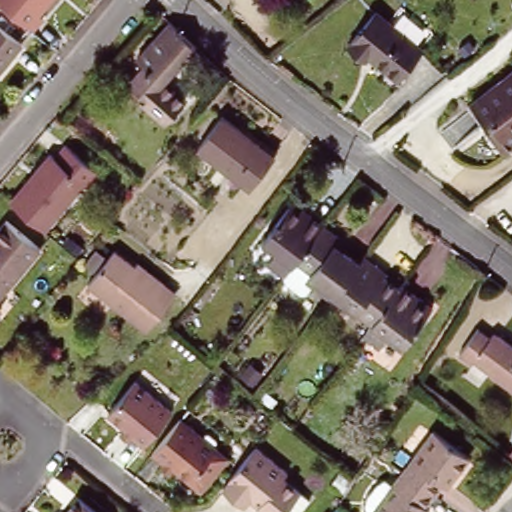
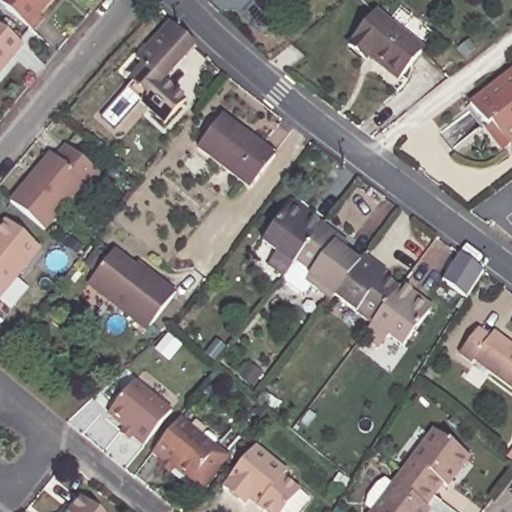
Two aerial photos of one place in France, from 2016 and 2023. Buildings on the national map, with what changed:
unchanged [(40,21),(30,32),(0,8),(0,0),(48,0),(34,16),(40,21)]
unchanged [(401,80),(371,56),(367,61),(350,47),(377,13),(423,47),(401,80)]
unchanged [(135,83),(146,71),(137,63),(171,24),(195,47),(162,85),(186,105),(168,125),(145,105),(128,91),(135,83)]
unchanged [(12,59),(9,56),(0,65),(0,27),(22,46),(12,59)]
unchanged [(491,129),(487,131),(471,108),(512,76),(512,147),(507,151),(491,129)]
unchanged [(248,187),(197,148),(221,115),(273,155),(248,187)]
unchanged [(48,154),(52,157),(63,145),(98,174),(87,186),(82,181),(41,231),(7,203),(48,154)]
unchanged [(269,266),(278,254),(264,243),(291,208),(293,204),(305,212),(323,226),(284,277),(284,278),(269,266)]
unchanged [(37,251),(0,295),(0,225),(2,223),(37,251)]
unchanged [(342,241),(352,248),(347,255),(360,265),(335,297),(332,301),(312,286),(306,294),(284,277),(323,226),(342,241)]
unchanged [(150,331),(130,315),(127,319),(88,287),(96,277),(114,254),(125,264),(129,259),(177,298),(157,322),(150,331)]
unchanged [(335,297),(360,265),(365,258),(381,270),(390,277),(387,281),(401,292),(374,326),(335,297)]
unchanged [(404,287),(426,304),(436,311),(432,316),(405,351),(390,340),(380,352),(364,339),(374,326),(401,292),(404,287)]
unchanged [(473,361),(471,362),(459,353),(479,328),(491,338),(496,332),(512,345),(512,391),(473,361)]
unchanged [(117,430),(123,423),(109,411),(136,379),(170,408),(141,443),(130,434),(126,438),(117,430)]
unchanged [(206,493),(195,483),(177,470),(172,476),(165,470),(168,466),(154,455),(183,420),(205,438),(207,435),(217,443),(215,446),(222,452),(232,460),(206,493)]
unchanged [(400,470),(430,429),(465,454),(442,484),(439,481),(430,492),(400,470)]
unchanged [(286,476),(282,481),(307,503),(300,512),(258,512),(257,511),(259,508),(250,500),(240,511),(221,494),(230,486),(227,483),(256,448),(286,476)]
unchanged [(509,460),(512,455),(512,463),(509,460)]
unchanged [(430,492),(423,503),(427,506),(422,512),(371,512),(400,470),(430,492)]
unchanged [(77,496),(96,512),(63,512),(77,496)]

